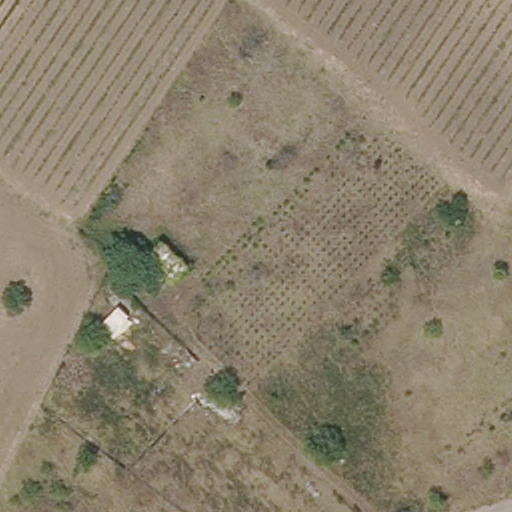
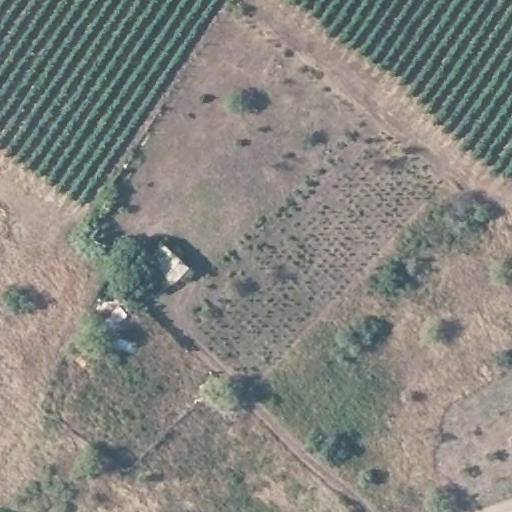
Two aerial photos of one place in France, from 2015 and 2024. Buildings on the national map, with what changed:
unchanged [(155,268),(170,250),(188,265),(172,283),(155,268)]

